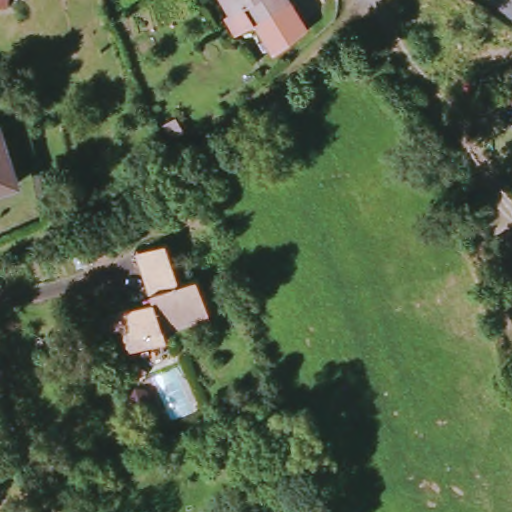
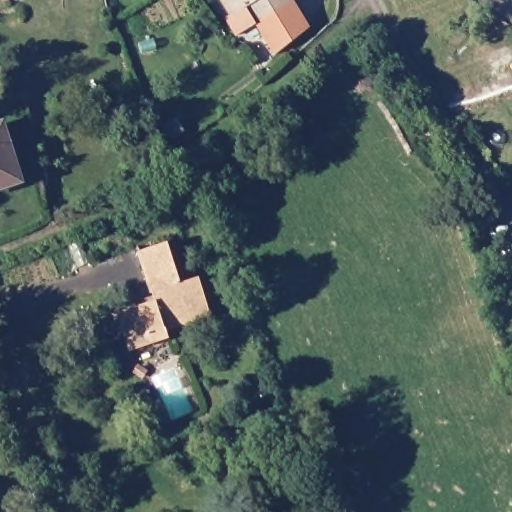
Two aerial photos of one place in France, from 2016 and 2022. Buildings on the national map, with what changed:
unchanged [(0,2),(0,0),(12,0),(11,4),(0,2)]
unchanged [(236,16),(226,0),(293,0),(295,4),(260,25),(249,9),(236,16)]
unchanged [(249,9),(260,25),(295,4),(310,27),(273,56),(255,25),(236,37),(224,19),(234,12),(236,16),(249,9)]
unchanged [(2,126),(24,181),(0,192),(0,127),(2,126)]
unchanged [(117,316),(155,305),(140,256),(169,247),(181,288),(199,282),(212,321),(167,336),(170,344),(130,357),(117,316)]

